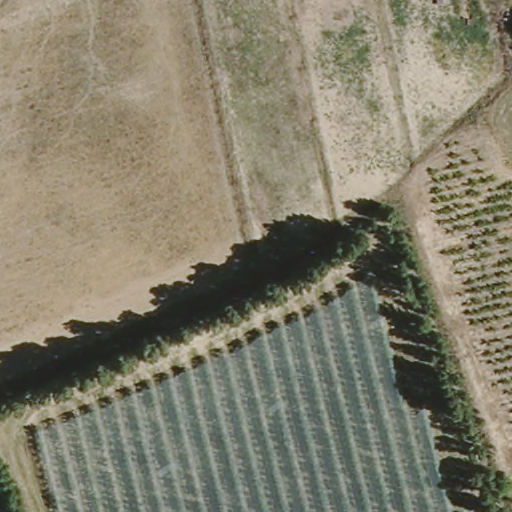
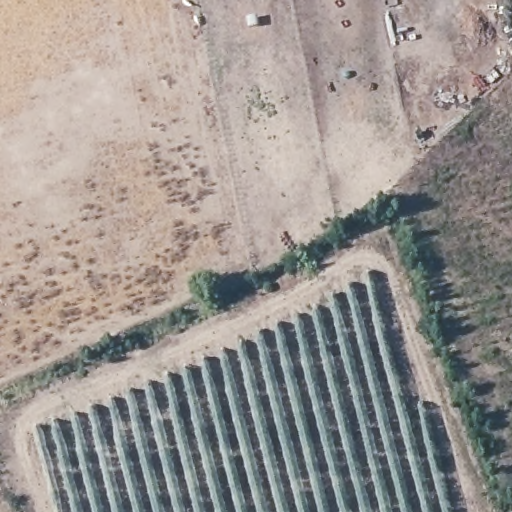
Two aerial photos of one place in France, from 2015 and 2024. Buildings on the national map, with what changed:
[]

